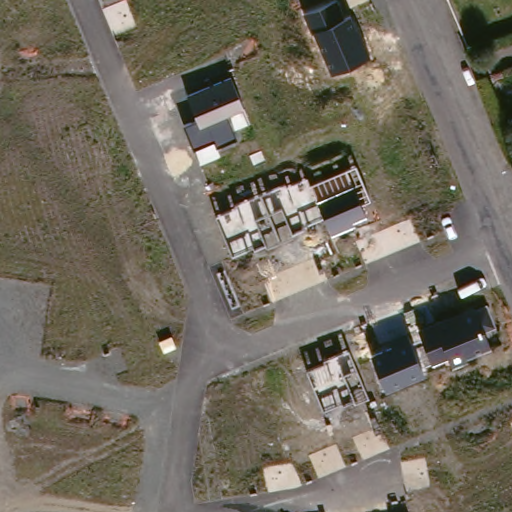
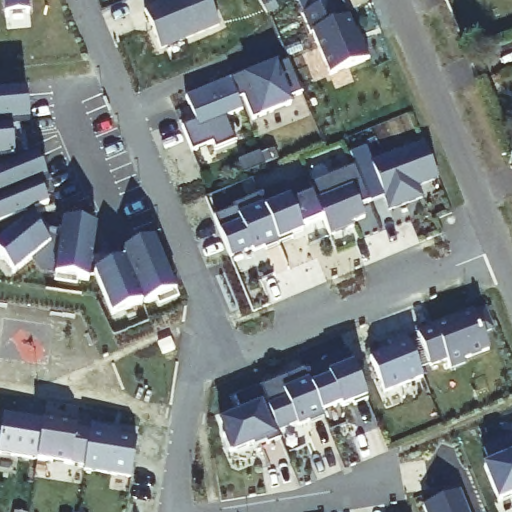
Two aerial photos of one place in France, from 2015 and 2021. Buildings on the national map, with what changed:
new [(36,16),(12,19),(11,0),(54,0),(35,2),(36,16)]
new [(214,0),(226,27),(166,51),(151,12),(181,0),(214,0)]
unchanged [(350,13),(370,56),(330,73),(303,11),(331,0),(334,0),(342,17),(350,13)]
new [(275,64),(287,59),(301,93),(290,97),(292,104),(255,118),(244,93),(238,95),(231,80),(275,64)]
unchanged [(244,108),(225,117),(237,140),(216,149),(212,142),(194,150),(184,125),(196,119),(187,98),(231,80),(244,108)]
new [(31,92),(35,125),(16,127),(21,167),(42,158),(52,183),(44,186),(53,208),(27,218),(29,224),(36,221),(51,241),(66,243),(69,223),(101,228),(94,283),(61,278),(61,276),(46,273),(36,262),(19,276),(0,254),(0,248),(10,240),(5,228),(1,229),(0,228),(0,95),(31,92)]
new [(438,179),(417,186),(422,200),(387,211),(383,196),(360,205),(364,219),(351,222),(354,227),(330,235),(323,221),(303,229),(305,234),(255,251),(255,249),(231,257),(215,218),(235,210),(232,205),(286,185),(287,188),(306,179),(310,185),(356,166),(351,153),(368,146),(374,161),(423,143),(438,179)]
new [(131,262),(127,254),(160,241),(181,294),(150,308),(148,305),(119,318),(99,275),(131,262)]
unchanged [(450,365),(446,357),(431,363),(418,327),(485,301),(495,325),(482,330),(490,348),(450,365)]
unchanged [(385,392),(370,357),(410,339),(425,376),(385,392)]
unchanged [(355,405),(353,402),(342,406),(340,403),(322,410),(307,370),(325,363),(323,358),(349,348),(371,399),(355,405)]
new [(322,410),(325,418),(299,427),(297,424),(275,434),(275,436),(231,454),(217,420),(244,410),(238,397),(307,370),(322,410)]
new [(9,417),(50,423),(44,463),(44,464),(28,462),(29,458),(3,454),(9,417)]
new [(50,423),(74,427),(74,430),(96,433),(91,469),(44,463),(50,423)]
new [(512,487),(501,491),(487,457),(493,454),(486,438),(512,428),(512,487)]
new [(91,469),(96,433),(96,430),(126,434),(126,439),(143,442),(137,481),(90,474),(91,469)]
new [(472,512),(427,512),(425,506),(461,490),(472,512)]

